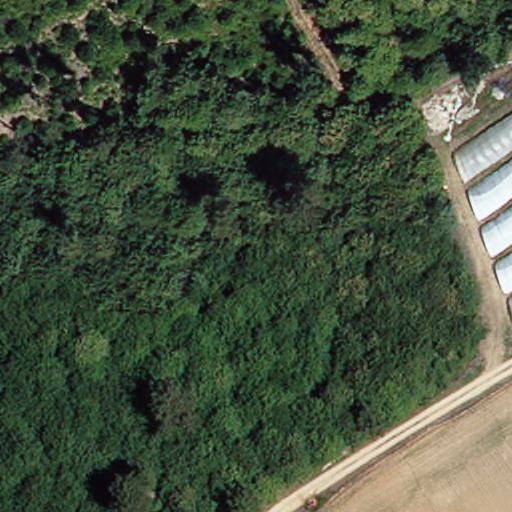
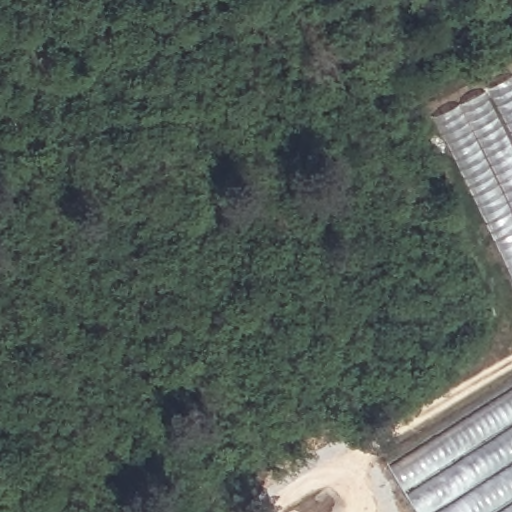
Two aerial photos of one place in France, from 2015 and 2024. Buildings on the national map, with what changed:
new [(512,75),(512,284),(431,118),(512,75)]
new [(512,389),(512,512),(414,512),(387,468),(512,389)]

